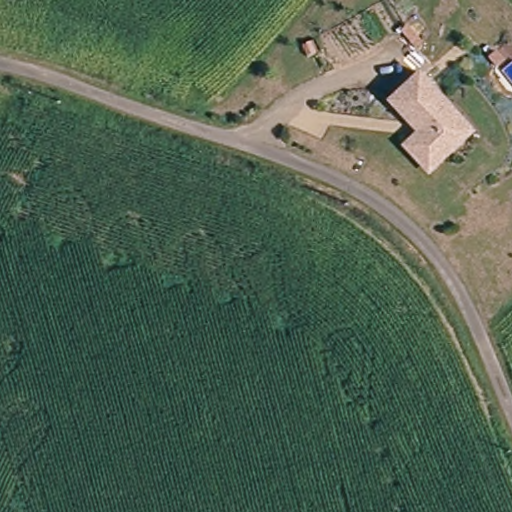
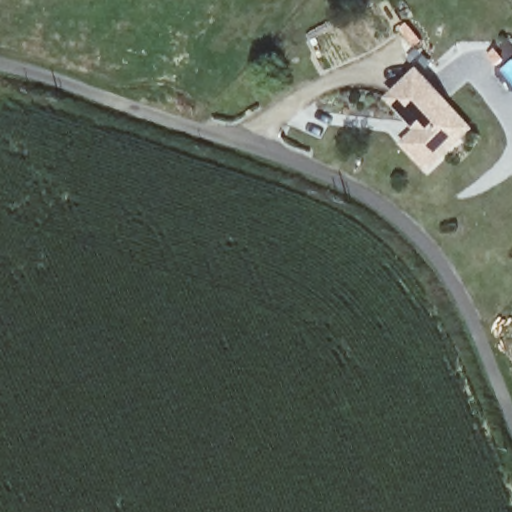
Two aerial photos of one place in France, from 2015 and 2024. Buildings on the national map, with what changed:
unchanged [(466,140),(433,170),(410,145),(424,131),(395,100),(424,73),(454,106),(476,129),(466,140)]

